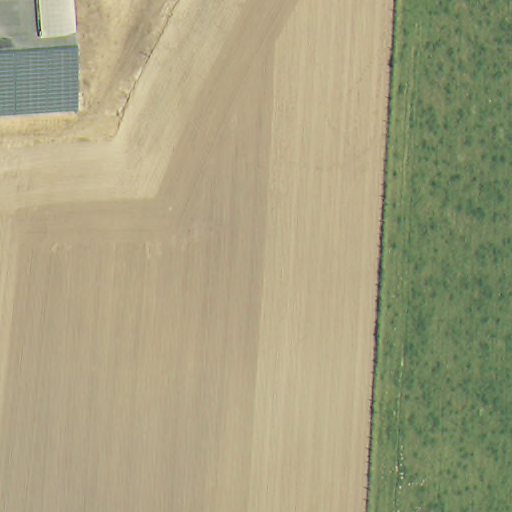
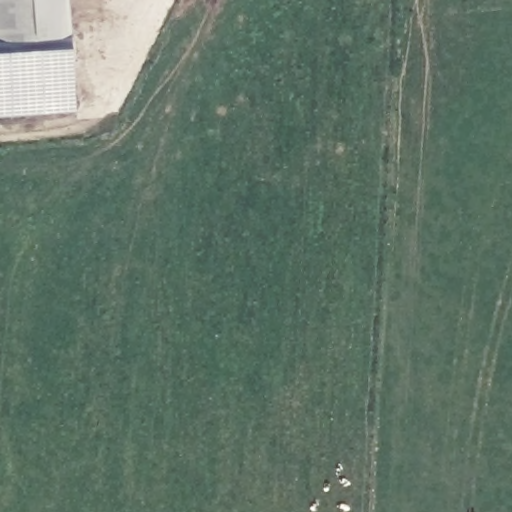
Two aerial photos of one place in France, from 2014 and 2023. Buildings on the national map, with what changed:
unchanged [(0,109),(0,0),(69,0),(72,26),(77,102),(0,109)]

